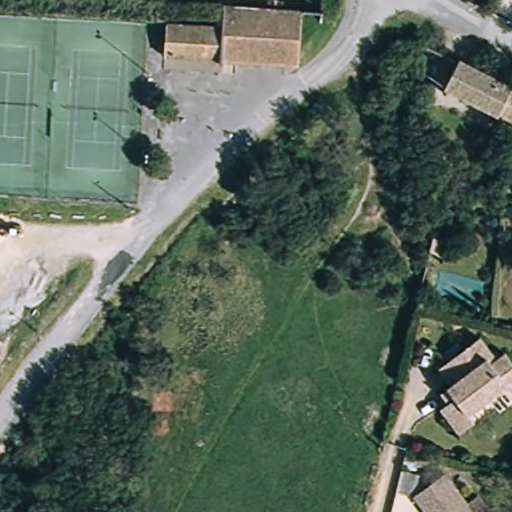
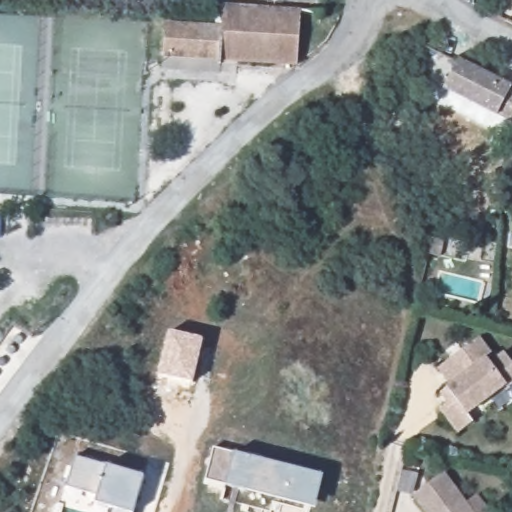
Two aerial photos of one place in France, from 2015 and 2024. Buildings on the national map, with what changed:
unchanged [(162,58),(162,26),(217,26),(217,10),(297,10),(294,61),(280,62),(228,61),(162,58)]
unchanged [(508,120),(510,116),(443,82),(457,58),(512,85),(512,123),(508,120)]
new [(204,340),(193,384),(158,375),(169,332),(204,340)]
unchanged [(498,361),(506,355),(512,364),(512,390),(473,418),(481,429),(464,440),(438,404),(444,399),(439,391),(443,388),(435,377),(482,342),(486,344),(498,361)]
new [(235,453),(323,476),(316,509),(227,485),(205,480),(213,450),(235,453)]
new [(144,477),(135,512),(111,512),(112,509),(96,504),(98,497),(67,487),(76,458),(107,466),(144,477)]
unchanged [(449,465),(480,512),(431,512),(415,487),(449,465)]

